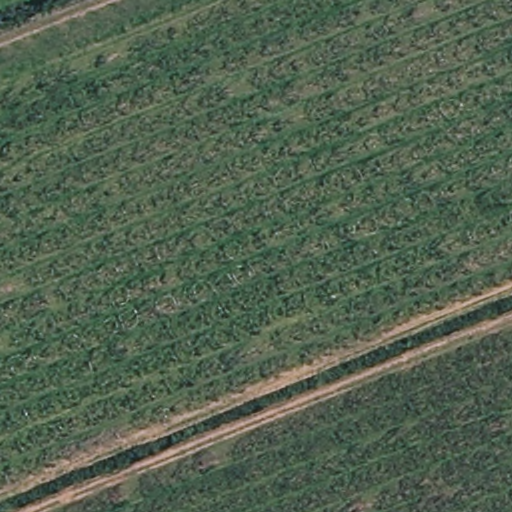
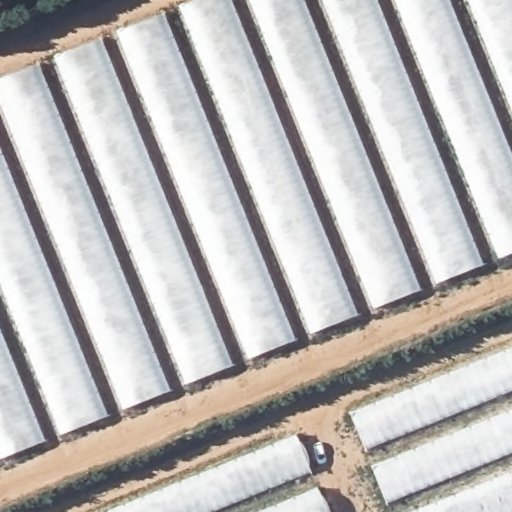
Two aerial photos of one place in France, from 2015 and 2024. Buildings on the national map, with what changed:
new [(195,0),(512,0),(512,254),(0,460),(0,79),(195,0)]
new [(512,348),(512,512),(389,512),(349,414),(512,348)]
new [(326,512),(112,512),(296,436),(326,512)]

